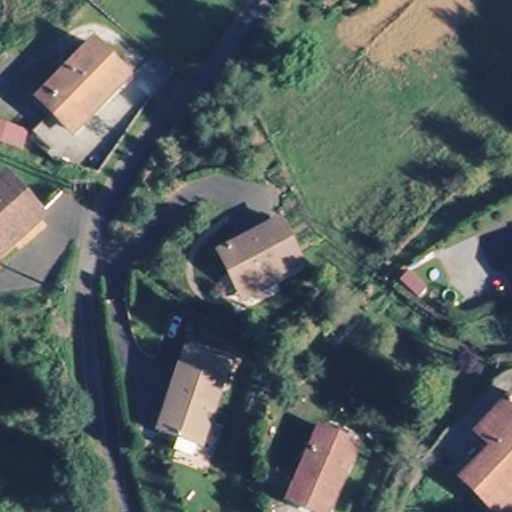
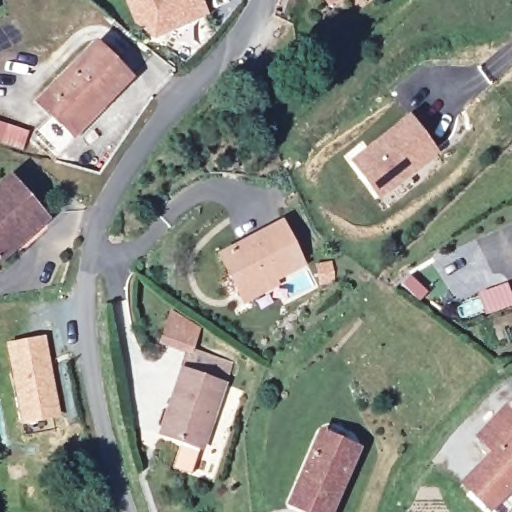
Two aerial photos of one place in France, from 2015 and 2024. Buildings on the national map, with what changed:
new [(143,42),(124,0),(202,0),(208,15),(143,42)]
unchanged [(56,114),(40,95),(95,40),(130,77),(58,149),(39,131),(56,114)]
new [(408,112),(439,151),(380,199),(348,159),(408,112)]
unchanged [(30,130),(24,150),(0,143),(0,119),(30,130)]
unchanged [(0,258),(0,183),(9,174),(48,215),(0,258)]
unchanged [(242,301),(238,292),(219,255),(281,224),(303,265),(272,281),(275,286),(242,301)]
new [(46,335),(62,417),(22,425),(5,344),(46,335)]
unchanged [(229,385),(208,450),(165,435),(187,369),(229,385)]
unchanged [(495,457),(481,441),(512,410),(512,496),(497,512),(488,512),(466,488),(495,457)]
unchanged [(298,501),(326,434),(359,450),(334,512),(320,512),(298,501)]
unchanged [(512,496),(512,512),(497,512),(512,496)]

